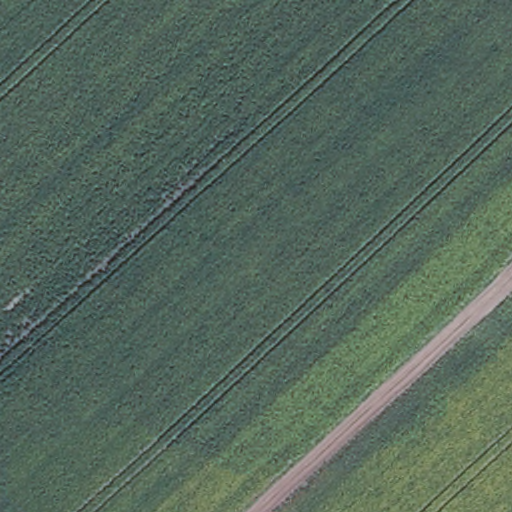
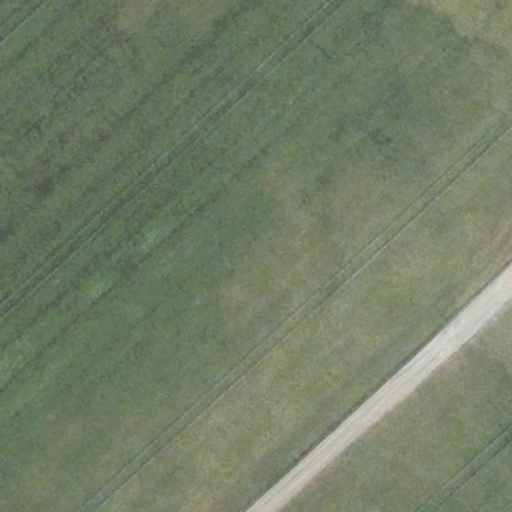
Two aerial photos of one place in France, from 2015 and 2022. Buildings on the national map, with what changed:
[]

